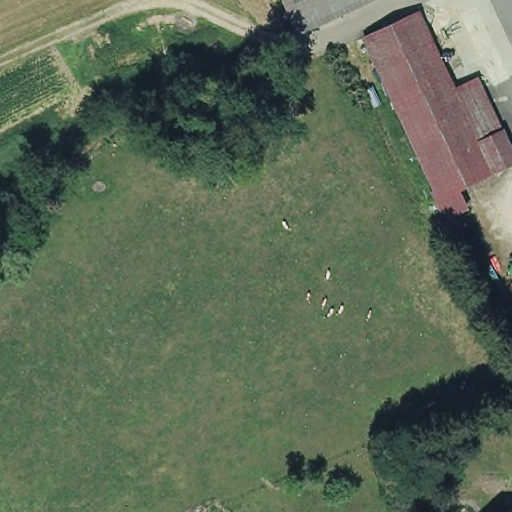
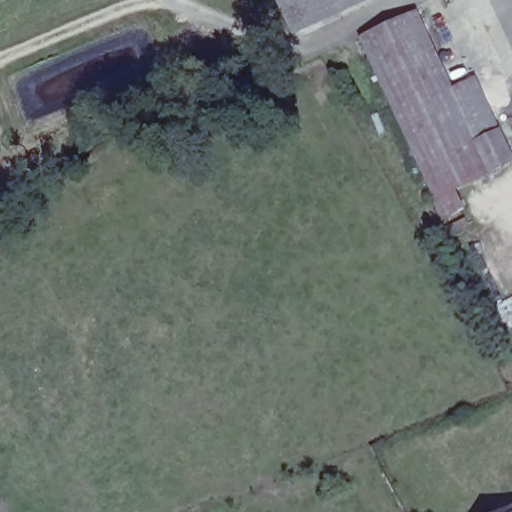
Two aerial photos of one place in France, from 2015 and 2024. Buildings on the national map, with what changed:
unchanged [(294,21),(284,0),(339,0),(294,21)]
unchanged [(512,143),(512,161),(462,185),(470,206),(445,217),(361,31),(420,7),(455,81),(480,71),(512,143)]

